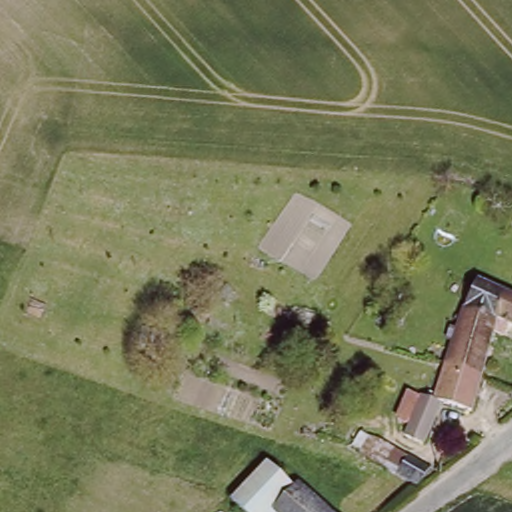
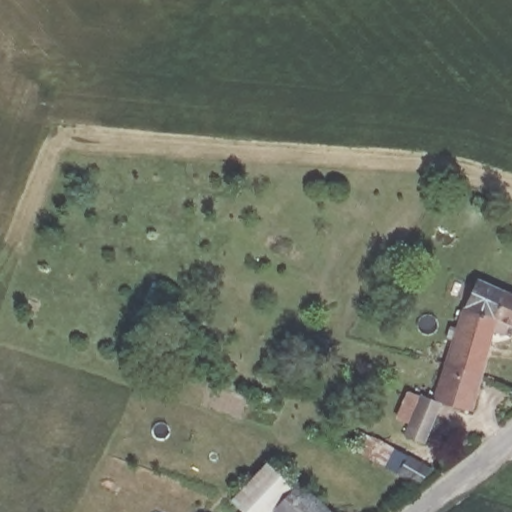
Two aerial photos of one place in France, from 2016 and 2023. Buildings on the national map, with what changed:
unchanged [(446,361),(464,308),(477,275),(512,290),(512,322),(509,329),(500,325),(484,372),(446,361)]
unchanged [(435,394),(446,361),(484,372),(472,407),(442,397),(425,439),(407,432),(412,419),(400,414),(410,387),(422,391),(435,394)]
unchanged [(362,454),(372,437),(429,466),(420,484),(362,454)]
unchanged [(232,499),(269,464),(292,489),(270,509),(267,512),(245,512),(232,499)]
unchanged [(298,484),(329,512),(273,512),(270,509),(292,489),(298,484)]

